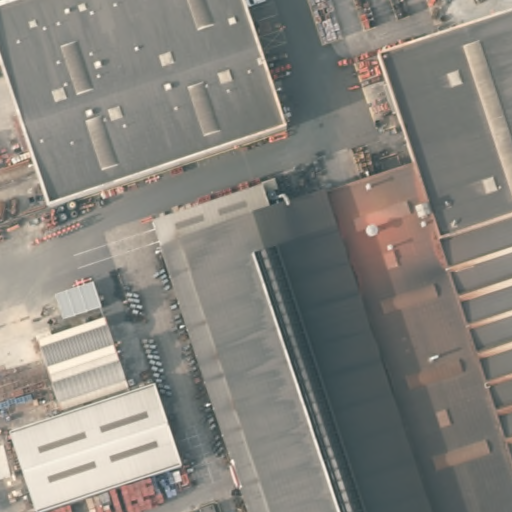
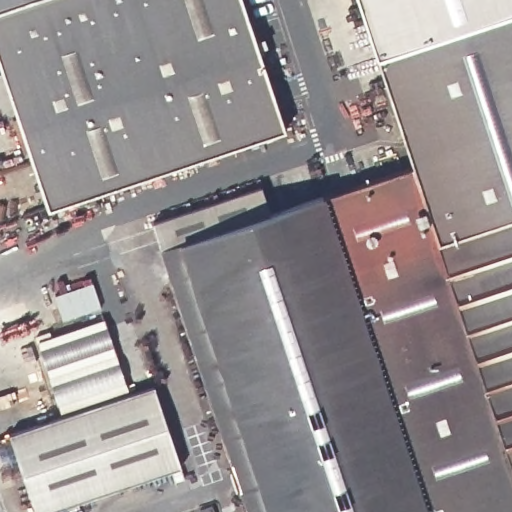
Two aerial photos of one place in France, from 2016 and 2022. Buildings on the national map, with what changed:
unchanged [(0,9),(0,0),(26,0),(0,9)]
unchanged [(26,0),(246,0),(289,130),(49,209),(0,66),(0,9),(26,0)]
new [(359,0),(512,0),(512,13),(378,57),(359,0)]
unchanged [(269,213),(412,166),(376,57),(512,13),(512,512),(247,512),(160,249),(269,213)]
unchanged [(152,222),(261,187),(269,213),(160,249),(152,222)]
unchanged [(63,392),(47,323),(116,307),(132,376),(63,392)]
unchanged [(30,494),(11,411),(158,376),(178,458),(30,494)]
unchanged [(199,512),(196,505),(209,500),(214,512),(199,512)]

